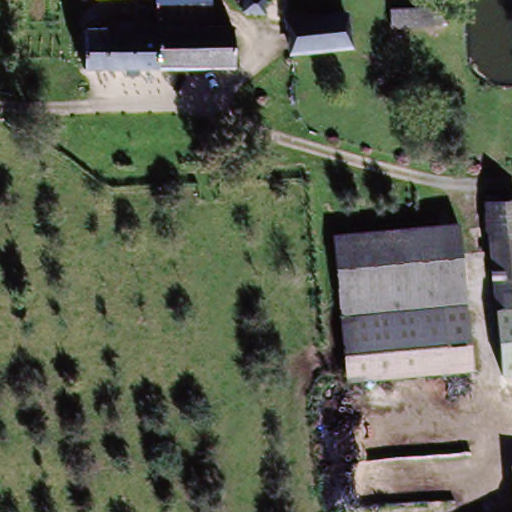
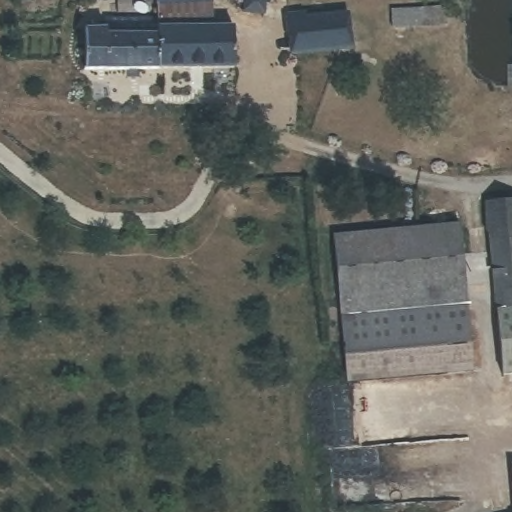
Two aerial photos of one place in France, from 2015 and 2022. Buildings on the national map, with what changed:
unchanged [(82,69),(81,31),(106,28),(105,20),(156,16),(155,2),(194,0),(205,0),(206,25),(230,24),(231,65),(82,69)]
unchanged [(155,0),(194,0),(155,2),(155,0)]
unchanged [(242,0),(264,0),(264,16),(242,17),(242,0)]
unchanged [(386,10),(426,7),(428,22),(388,24),(386,10)]
unchanged [(345,19),(348,49),(289,56),(286,26),(345,19)]
unchanged [(484,202),(512,198),(512,378),(496,381),(484,202)]
unchanged [(337,231),(460,223),(467,303),(341,313),(337,231)]
unchanged [(472,371),(346,384),(341,313),(467,303),(472,371)]

